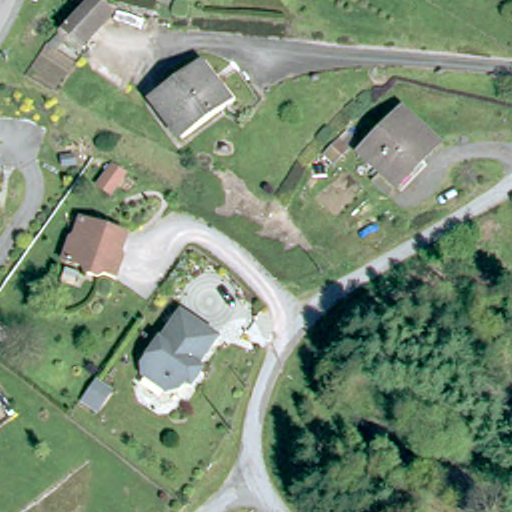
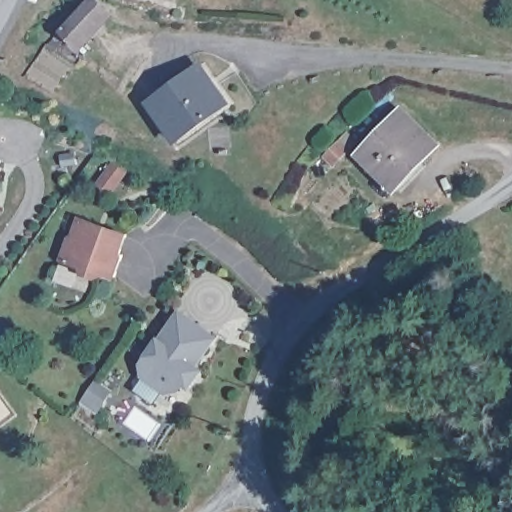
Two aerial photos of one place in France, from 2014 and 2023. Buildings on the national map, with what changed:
unchanged [(29,2),(30,0),(37,0),(35,5),(29,2)]
unchanged [(91,6),(100,14),(110,21),(83,52),(64,37),(74,25),(91,6)]
unchanged [(153,105),(203,69),(216,86),(211,90),(226,108),(181,140),(153,105)]
unchanged [(398,192),(363,159),(408,114),(443,145),(398,192)]
unchanged [(337,164),(326,153),(339,139),(350,151),(337,164)]
unchanged [(121,258),(113,280),(102,277),(95,280),(85,277),(81,270),(62,264),(69,241),(73,242),(79,223),(124,238),(118,257),(121,258)]
unchanged [(158,344),(177,315),(212,340),(193,368),(199,372),(188,388),(164,394),(141,379),(141,364),(156,343),(158,344)]

